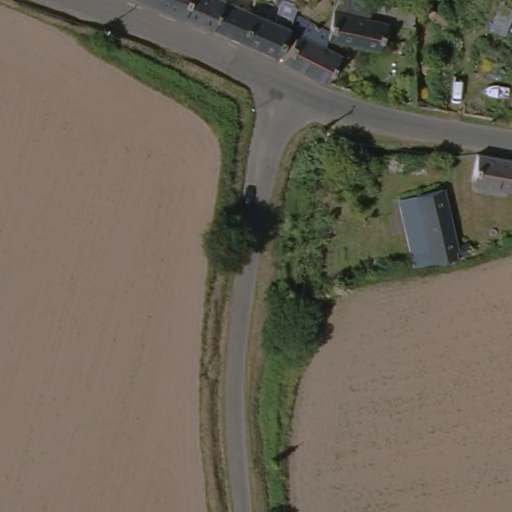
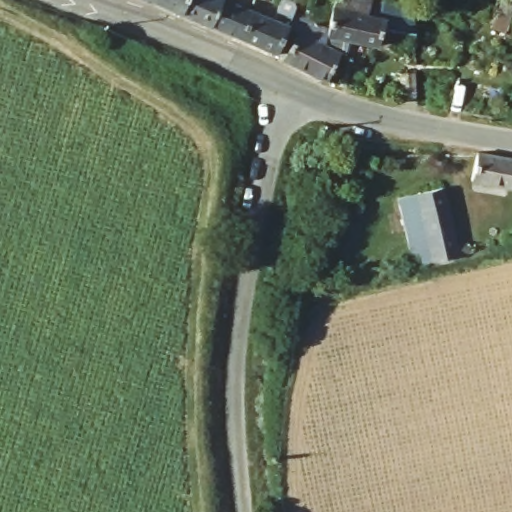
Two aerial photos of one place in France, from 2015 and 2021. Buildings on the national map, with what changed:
unchanged [(244,37),(214,24),(186,12),(179,9),(161,0),(160,2),(157,0),(236,0),(256,8),(292,23),(294,23),(281,52),(244,37)]
unchanged [(331,28),(329,44),(346,52),(332,77),(332,79),(287,58),(288,55),(281,52),(294,23),(292,23),(297,12),(283,8),(287,0),(297,0),(302,2),(297,12),(306,16),(331,28)]
unchanged [(394,19),(384,44),(332,34),(338,0),(377,0),(377,1),(387,3),(420,9),(420,10),(421,24),(394,19)]
unchanged [(389,88),(387,62),(400,62),(402,87),(389,88)]
unchanged [(477,152),(492,154),(512,157),(512,188),(474,183),(477,152)]
unchanged [(446,239),(455,237),(458,253),(421,260),(408,195),(434,190),(446,239)]

